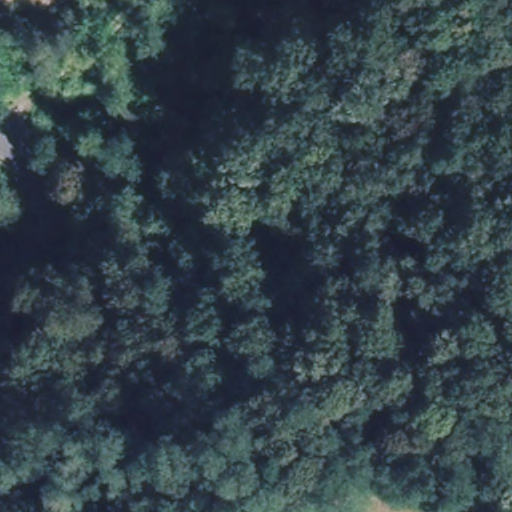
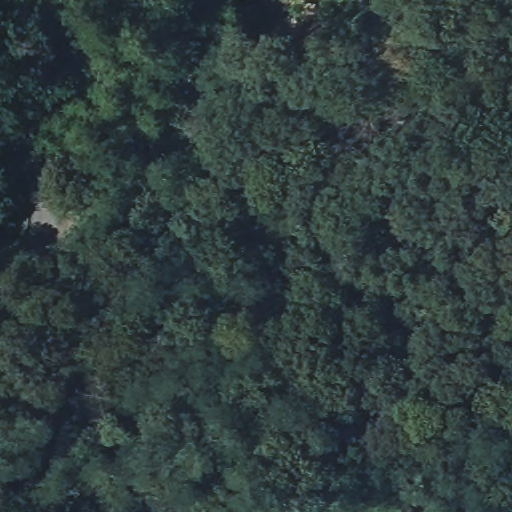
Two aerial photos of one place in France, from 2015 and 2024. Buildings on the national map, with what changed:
unchanged [(105,153),(106,162),(93,165),(92,156),(105,153)]

